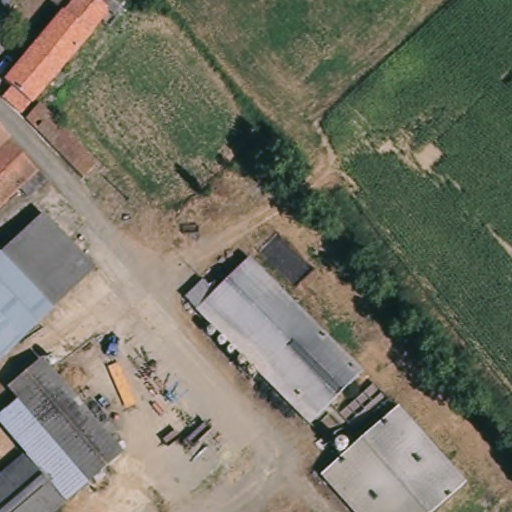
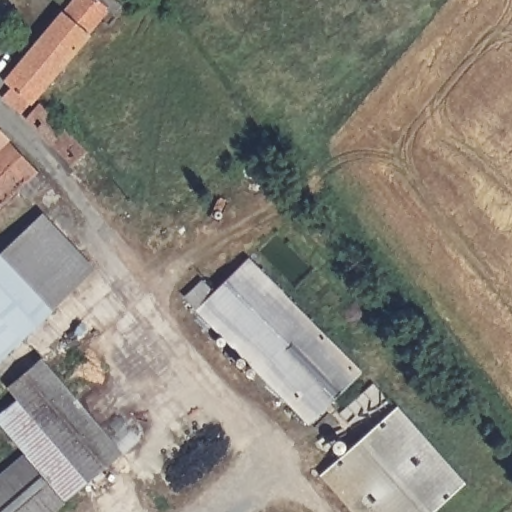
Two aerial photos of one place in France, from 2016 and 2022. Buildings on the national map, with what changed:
unchanged [(17,88),(5,77),(59,9),(68,0),(115,0),(119,3),(87,35),(28,109),(12,95),(17,88)]
unchanged [(95,161),(100,158),(115,174),(96,191),(26,119),(42,101),(95,161)]
unchanged [(47,184),(28,200),(22,193),(18,196),(0,213),(0,134),(47,184)]
unchanged [(90,269),(40,315),(0,352),(0,254),(42,216),(90,269)]
unchanged [(246,261),(357,372),(312,420),(198,308),(246,261)]
unchanged [(9,387),(40,359),(119,451),(88,478),(17,397),(9,387)]
unchanged [(17,397),(88,478),(68,497),(0,420),(0,412),(17,397)]
unchanged [(431,512),(352,512),(318,472),(340,457),(327,445),(338,436),(350,450),(397,405),(467,482),(431,512)]
unchanged [(67,501),(55,512),(0,512),(0,474),(25,453),(67,501)]

